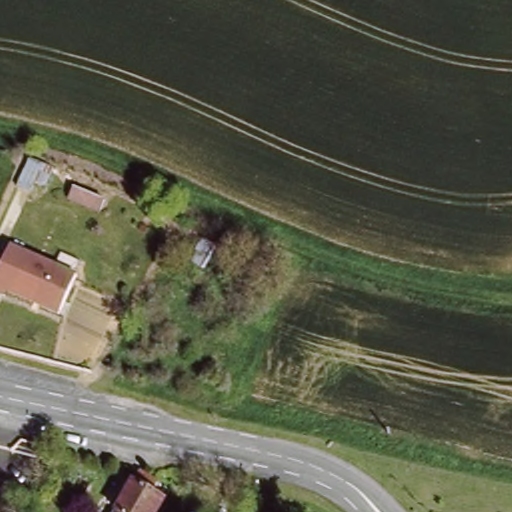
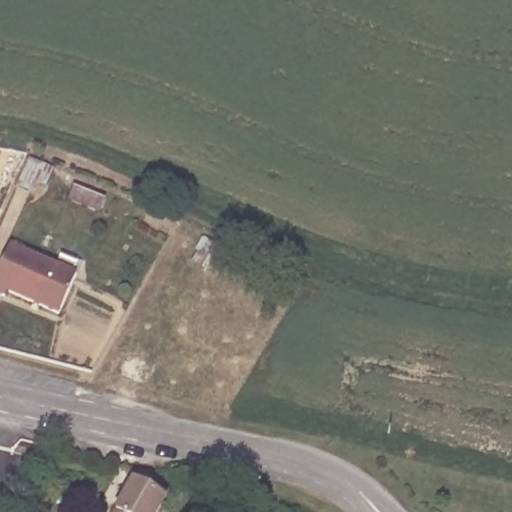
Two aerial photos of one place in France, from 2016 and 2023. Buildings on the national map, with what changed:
unchanged [(201,240),(232,258),(220,281),(188,260),(201,240)]
unchanged [(63,313),(10,289),(7,295),(0,291),(0,277),(15,244),(81,274),(63,313)]
unchanged [(153,475),(149,484),(162,490),(151,512),(112,512),(135,466),(153,475)]

